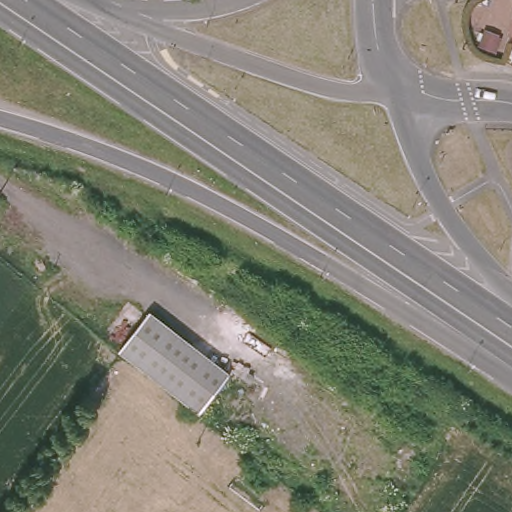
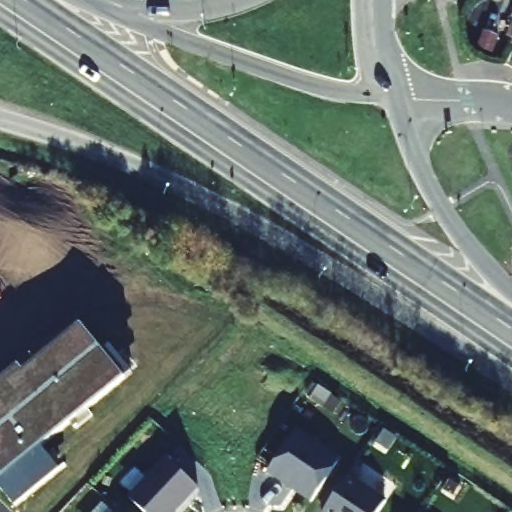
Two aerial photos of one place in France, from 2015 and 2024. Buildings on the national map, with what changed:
demolished [(227,371),(200,405),(125,344),(153,309),(227,371)]
new [(110,344),(133,372),(41,445),(60,470),(14,506),(0,488),(0,379),(18,365),(23,371),(80,324),(101,350),(110,344)]
new [(339,452),(314,495),(271,470),(297,426),(339,452)]
new [(169,453),(198,482),(170,512),(151,512),(131,491),(169,453)]
new [(375,512),(331,512),(325,508),(348,472),(384,497),(375,512)]
new [(118,505),(125,512),(112,512),(118,505)]

